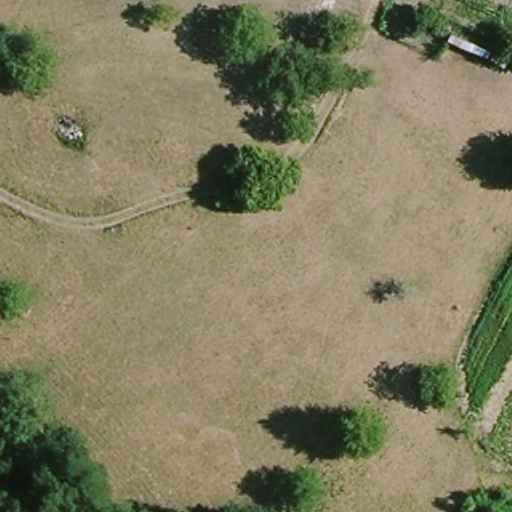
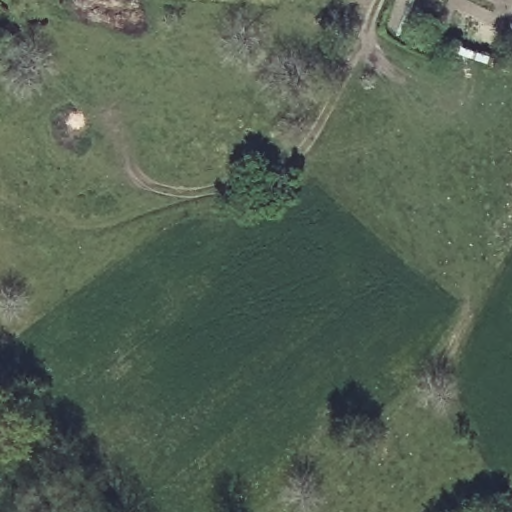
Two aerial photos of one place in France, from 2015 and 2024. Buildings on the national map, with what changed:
unchanged [(368,0),(353,31),(337,24),(345,0),(368,0)]

